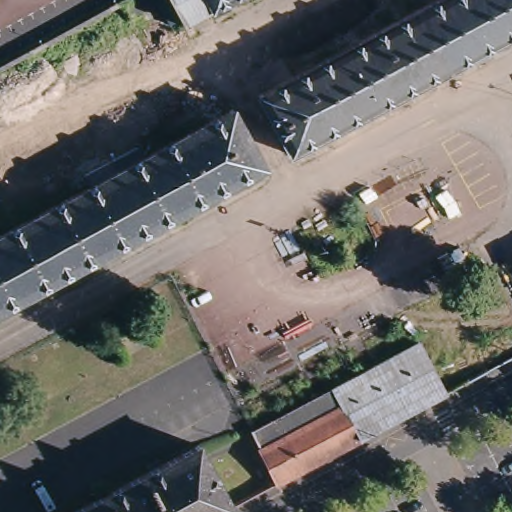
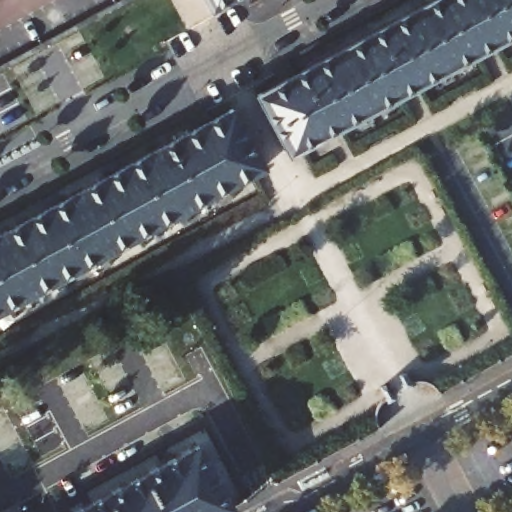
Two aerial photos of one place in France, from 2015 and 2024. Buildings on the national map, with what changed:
unchanged [(208,10),(202,0),(226,0),(208,10)]
unchanged [(285,154),(254,97),(432,0),(512,0),(512,32),(285,154)]
unchanged [(261,167),(0,309),(0,236),(231,110),(261,167)]
demolished [(282,477),(254,428),(333,387),(334,388),(421,341),(447,389),(282,477)]
unchanged [(74,512),(204,443),(236,502),(218,512),(74,512)]

